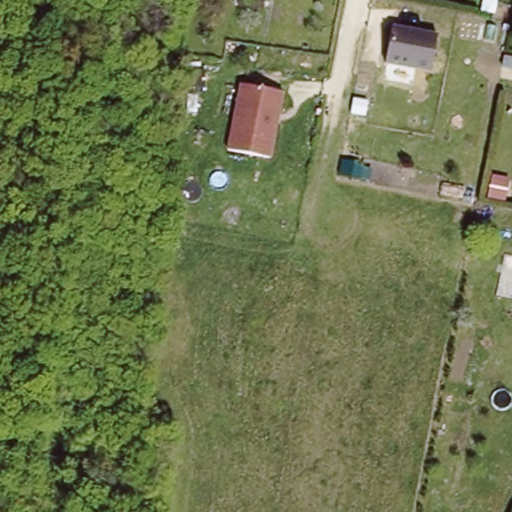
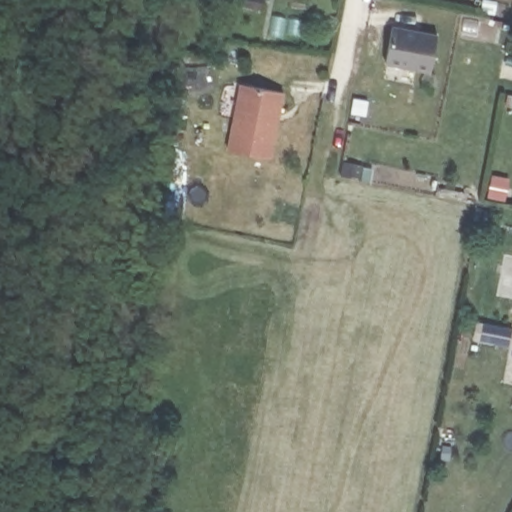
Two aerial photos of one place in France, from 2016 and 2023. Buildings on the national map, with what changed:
unchanged [(438,34),(429,78),(383,68),(392,24),(438,34)]
unchanged [(284,93),(272,159),(227,150),(240,84),(284,93)]

